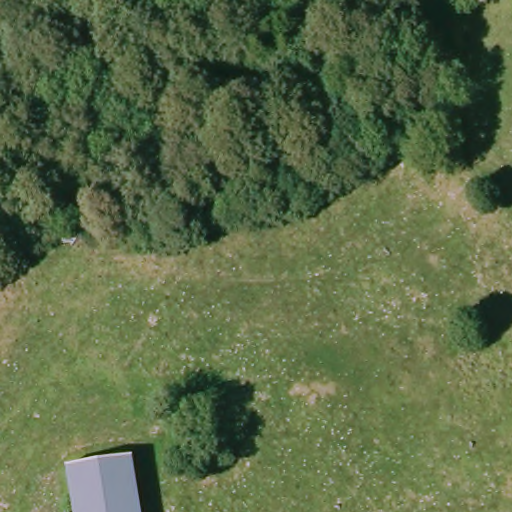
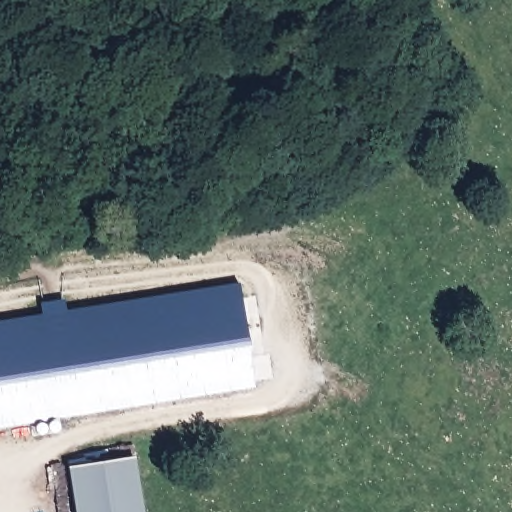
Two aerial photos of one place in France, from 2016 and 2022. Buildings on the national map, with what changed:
new [(55,417),(57,427),(57,430),(56,432),(44,435),(38,435),(35,434),(34,431),(32,426),(32,422),(0,427),(0,321),(238,283),(254,386),(55,417)]
unchanged [(146,512),(79,512),(72,467),(137,456),(146,512)]

